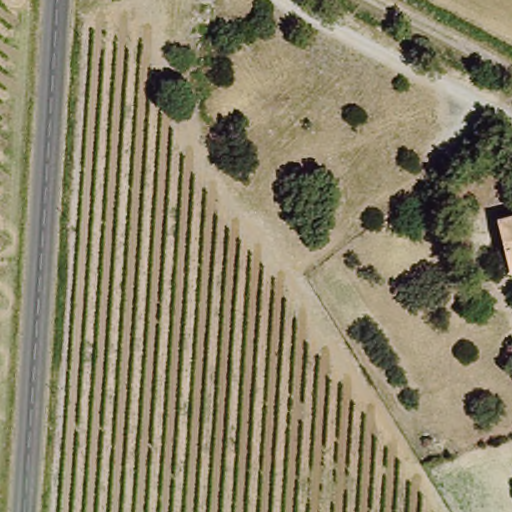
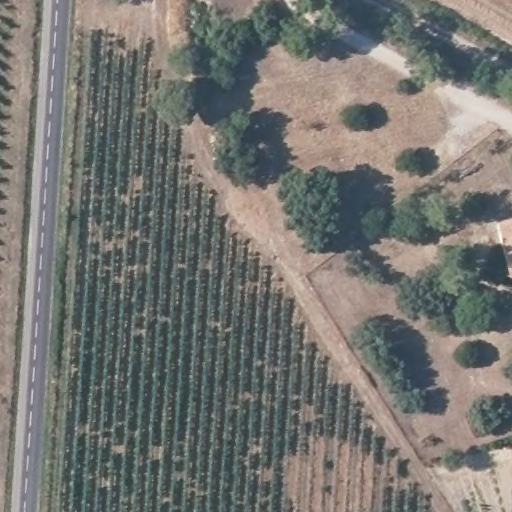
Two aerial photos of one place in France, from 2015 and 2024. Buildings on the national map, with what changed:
unchanged [(499,262),(494,219),(512,218),(512,274),(501,275),(499,262)]

